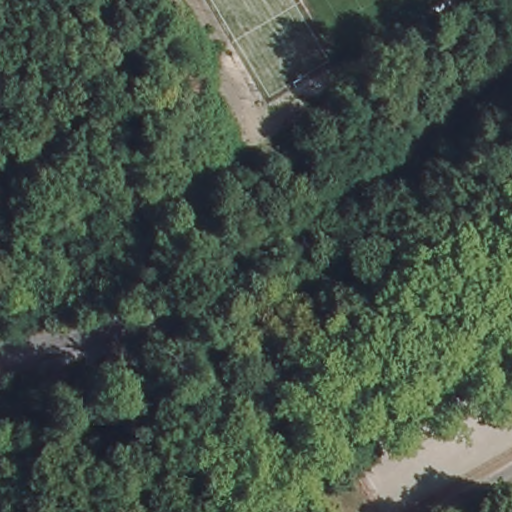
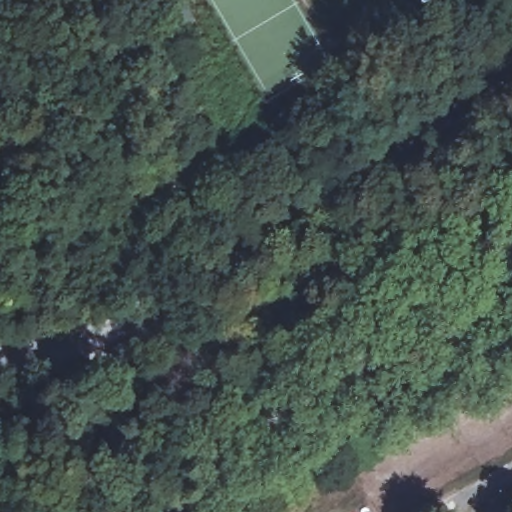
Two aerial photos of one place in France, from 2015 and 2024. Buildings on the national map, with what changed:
[]

